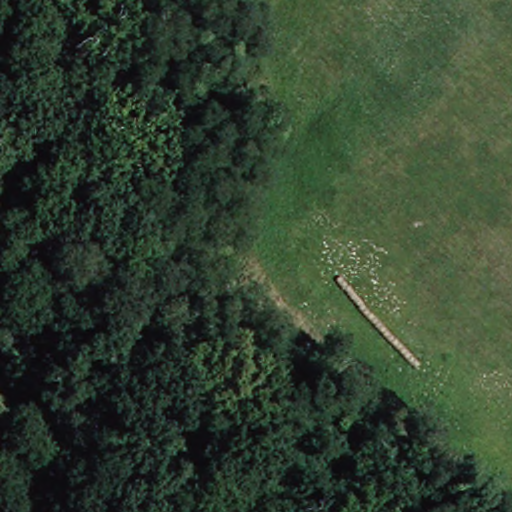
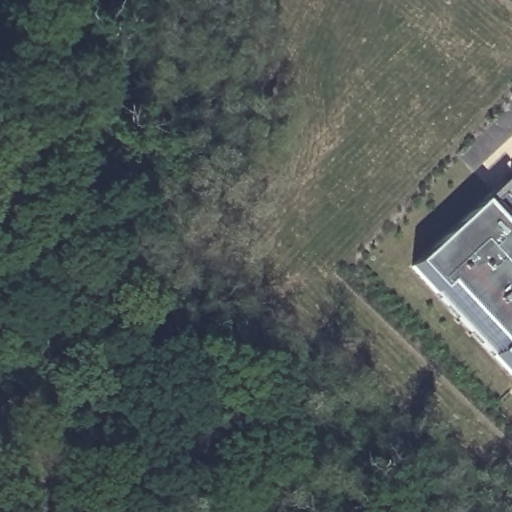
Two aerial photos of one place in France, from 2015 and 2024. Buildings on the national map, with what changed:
new [(511,385),(487,358),(495,352),(490,347),(483,353),(434,302),(441,295),(437,290),(430,297),(405,271),(484,197),(508,224),(501,231),(505,235),(512,229),(512,385),(511,385)]

